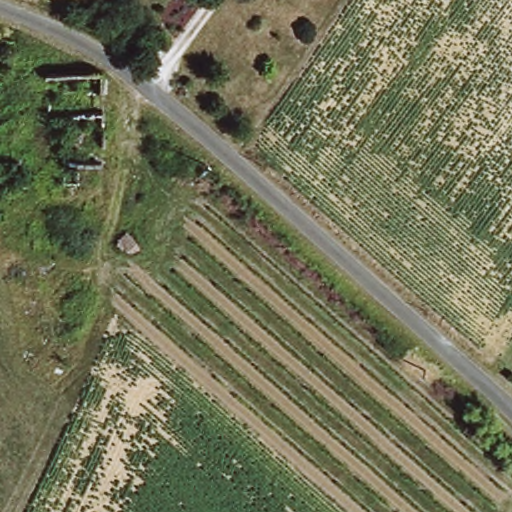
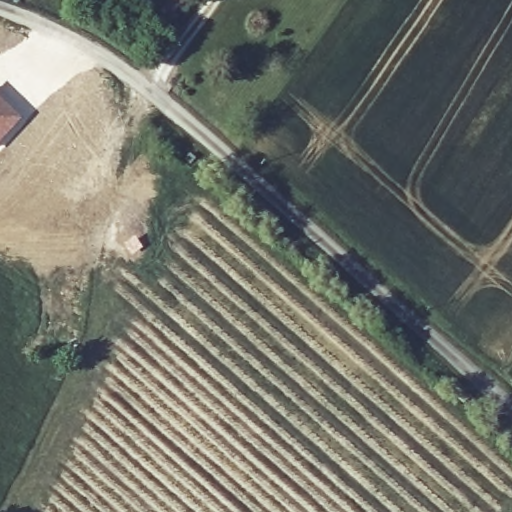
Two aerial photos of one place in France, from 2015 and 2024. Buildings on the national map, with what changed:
new [(21,117),(0,140),(0,97),(21,117)]

